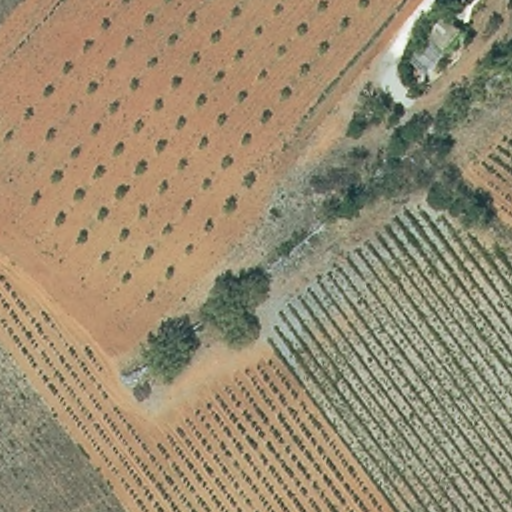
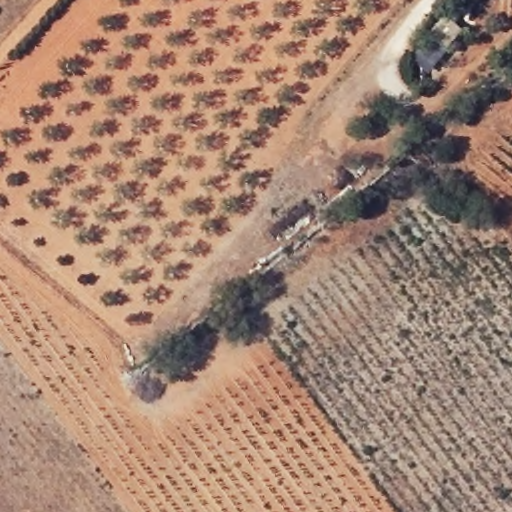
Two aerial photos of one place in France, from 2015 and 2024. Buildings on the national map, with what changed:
unchanged [(473,21),(428,72),(411,60),(455,6),(473,21)]

